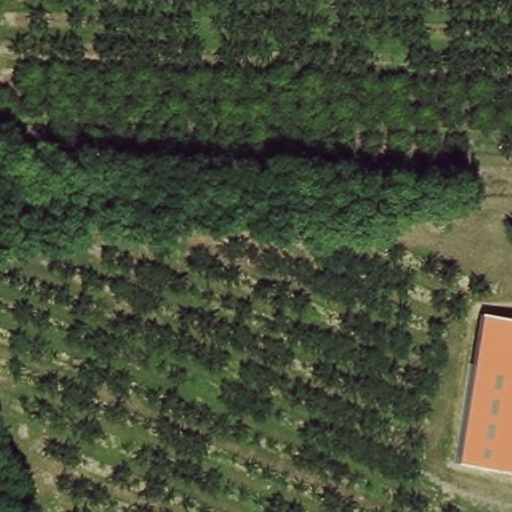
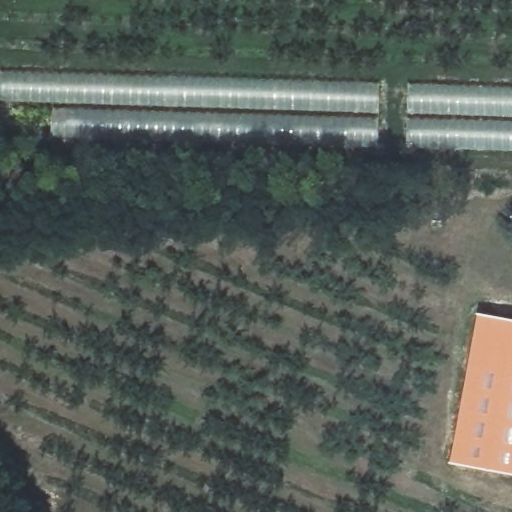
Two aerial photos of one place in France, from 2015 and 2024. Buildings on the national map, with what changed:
new [(381,155),(55,145),(58,105),(0,103),(0,93),(3,71),(384,86),(381,155)]
new [(512,87),(512,155),(408,154),(410,84),(512,87)]
unchanged [(456,461),(482,311),(512,316),(512,470),(456,461)]

